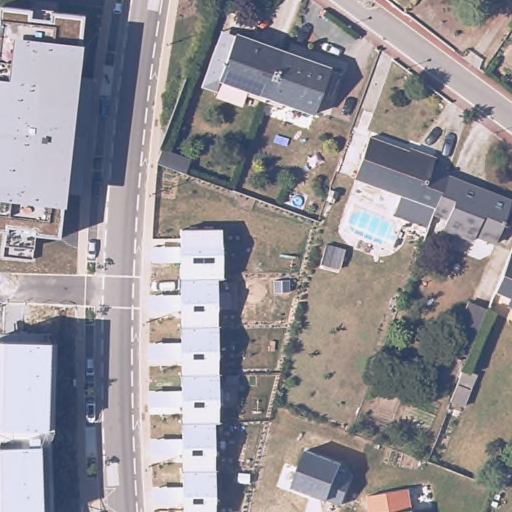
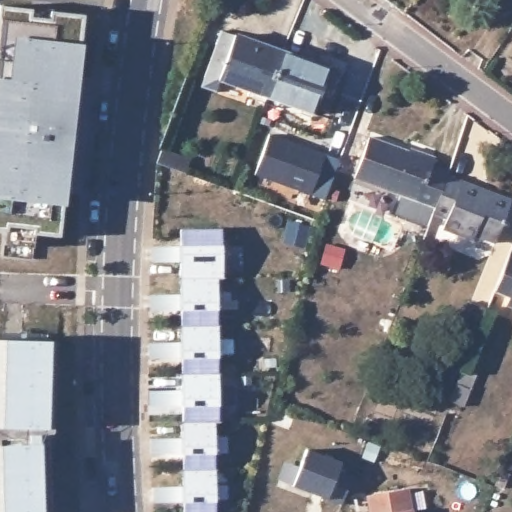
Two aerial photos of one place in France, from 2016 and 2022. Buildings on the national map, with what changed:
unchanged [(34,245),(32,258),(2,256),(5,244),(4,229),(0,229),(0,5),(84,14),(81,44),(77,79),(92,79),(81,192),(65,193),(63,204),(59,235),(37,232),(34,245)]
unchanged [(218,29),(221,27),(283,49),(266,100),(247,93),(249,89),(202,72),(218,29)]
unchanged [(318,61),(317,64),(356,77),(347,102),(337,100),(331,116),(285,100),(282,105),(266,100),(283,49),(318,61)]
unchanged [(391,210),(397,190),(352,174),(366,133),(405,147),(405,144),(430,154),(427,162),(443,168),(442,171),(431,202),(429,202),(422,221),(391,210)]
new [(337,197),(327,194),(327,196),(258,174),(271,134),(341,156),(331,185),(340,188),(337,197)]
unchanged [(192,157),(187,172),(159,162),(164,147),(192,157)]
unchanged [(431,202),(442,171),(457,176),(455,181),(483,191),(485,187),(506,196),(491,239),(470,231),(468,235),(437,225),(442,214),(429,209),(431,202)]
unchanged [(180,280),(180,261),(150,262),(149,245),(179,245),(179,229),(221,228),(221,278),(217,278),(180,280)]
unchanged [(512,251),(512,299),(496,292),(512,251)]
unchanged [(181,327),(181,311),(149,311),(149,293),(180,294),(180,280),(217,278),(217,326),(181,327)]
unchanged [(410,280),(422,285),(414,308),(401,303),(410,280)]
unchanged [(217,374),(182,375),(182,358),(147,359),(147,341),(182,342),(181,327),(217,326),(217,374)]
unchanged [(56,340),(53,512),(0,512),(0,339),(51,340),(56,340)]
unchanged [(147,390),(182,390),(182,375),(217,374),(219,422),(214,422),(182,422),(182,406),(147,407),(147,390)]
unchanged [(454,391),(467,397),(460,413),(447,409),(454,391)]
unchanged [(182,422),(214,422),(215,470),(182,470),(182,455),(151,455),(150,437),(182,437),(182,422)]
unchanged [(327,498),(292,486),(306,450),(342,463),(339,473),(350,477),(342,503),(327,498)]
unchanged [(215,470),(215,512),(183,512),(183,501),(152,502),(153,486),(182,485),(182,470),(215,470)]
unchanged [(408,489),(412,509),(413,512),(370,512),(367,495),(408,489)]

